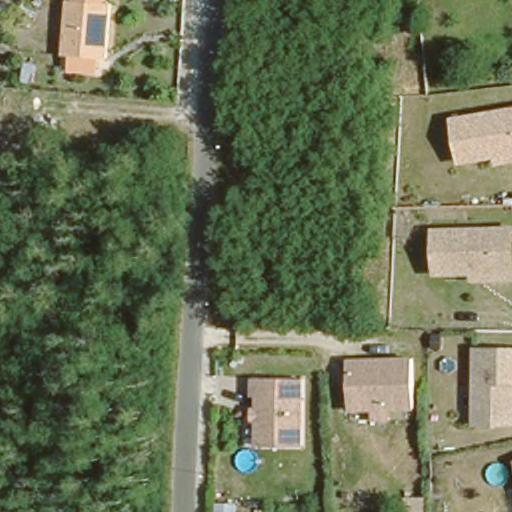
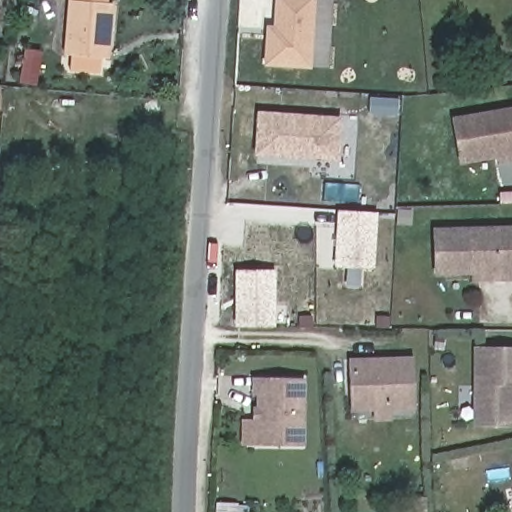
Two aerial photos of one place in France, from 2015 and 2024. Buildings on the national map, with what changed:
unchanged [(103,1),(108,2),(103,57),(96,57),(95,68),(88,71),(69,70),(69,55),(63,53),(67,1),(67,0),(103,0),(103,1)]
new [(278,28),(280,0),(317,0),(313,68),(269,65),(269,37),(270,27),(278,28)]
new [(261,112),(342,118),(339,160),(258,154),(261,112)]
unchanged [(469,169),(460,128),(512,117),(512,168),(505,169),(503,162),(469,169)]
new [(378,213),(375,268),(361,268),(360,287),(346,287),(347,266),(334,265),(337,210),(378,213)]
unchanged [(471,268),(436,270),(433,228),(476,225),(512,223),(512,273),(498,274),(486,274),(472,275),(471,268)]
new [(276,270),(275,326),(234,325),(235,270),(276,270)]
unchanged [(512,425),(472,422),(473,345),(512,346),(512,425)]
unchanged [(372,410),(349,412),(348,400),(345,362),(400,358),(411,357),(414,406),(403,407),(389,408),(390,420),(373,421),(372,410)]
unchanged [(250,408),(255,408),(255,393),(250,394),(250,377),(257,377),(300,375),(302,443),(260,444),(256,445),(255,419),(250,419),(250,408)]
unchanged [(424,512),(424,504),(439,503),(439,512),(424,512)]

